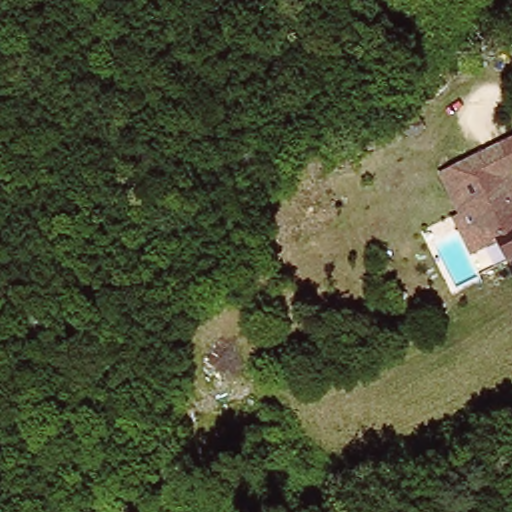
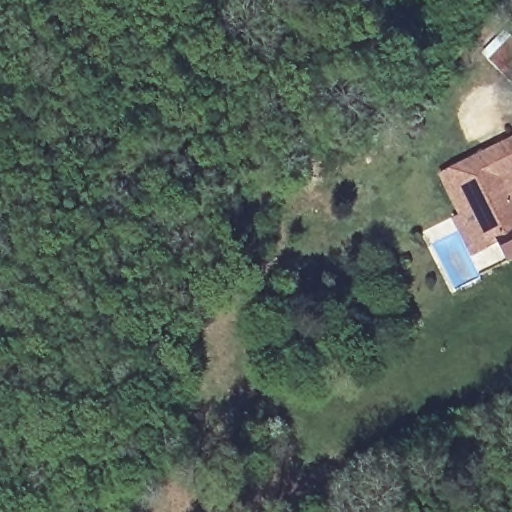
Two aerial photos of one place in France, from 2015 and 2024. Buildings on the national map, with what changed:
unchanged [(435,136),(421,152),(405,138),(418,122),(435,136)]
unchanged [(509,255),(496,237),(490,241),(475,219),(465,218),(462,204),(456,206),(441,173),(449,168),(512,135),(512,169),(509,170),(512,177),(512,254),(509,255)]

